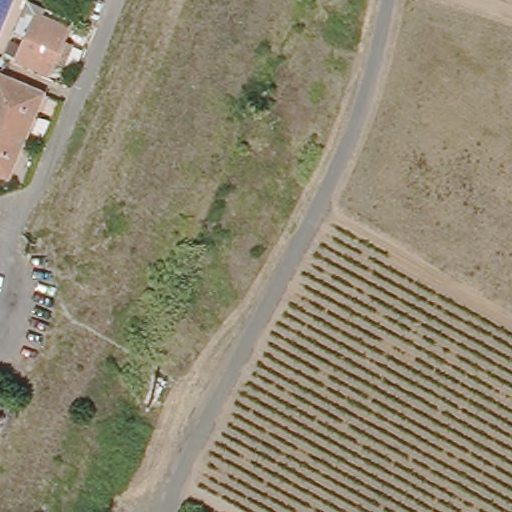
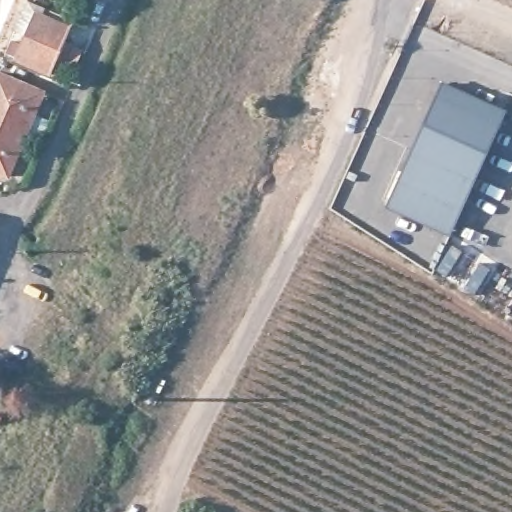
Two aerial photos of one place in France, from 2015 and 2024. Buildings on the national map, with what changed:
unchanged [(64,50),(70,55),(62,75),(55,72),(52,79),(17,63),(27,43),(15,38),(27,11),(42,17),(40,25),(69,38),(64,50)]
unchanged [(0,74),(35,89),(0,171),(0,170),(0,74)]
new [(505,111),(451,238),(385,209),(442,83),(505,111)]

